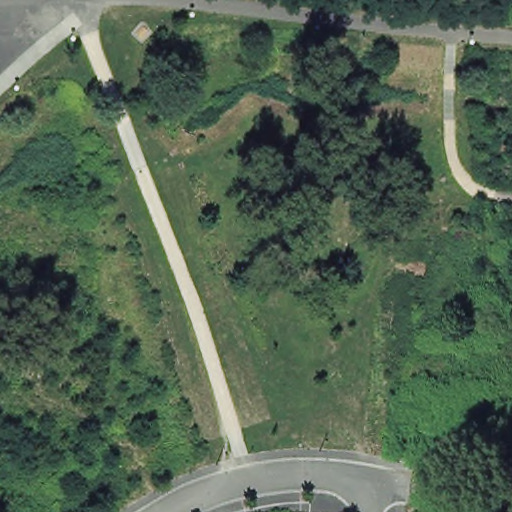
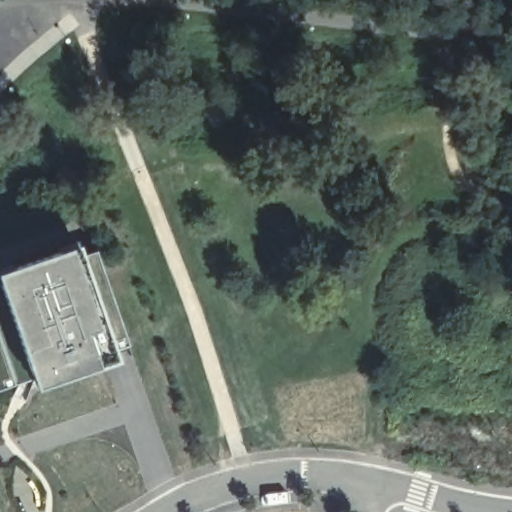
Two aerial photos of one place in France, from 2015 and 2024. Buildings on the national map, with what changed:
new [(83,258),(97,250),(129,347),(115,353),(117,361),(35,387),(32,380),(15,384),(0,342),(0,287),(0,271),(78,244),(83,258)]
new [(0,389),(0,342),(15,384),(0,389)]

